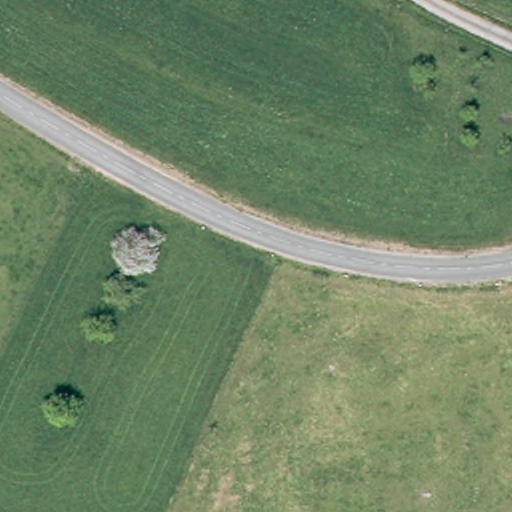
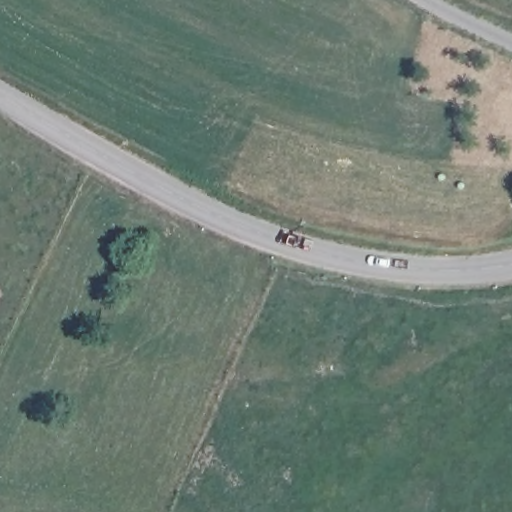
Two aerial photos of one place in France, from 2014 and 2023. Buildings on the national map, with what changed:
[]

